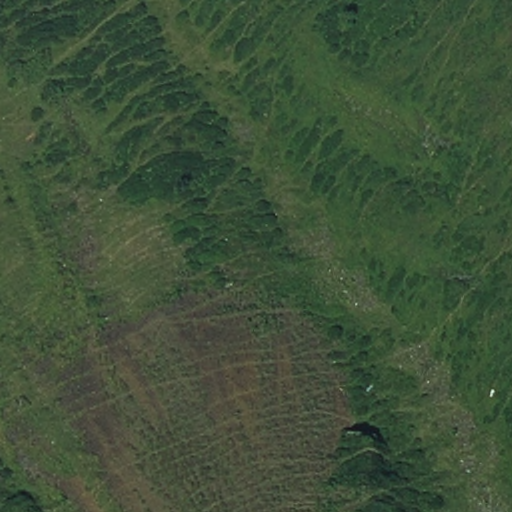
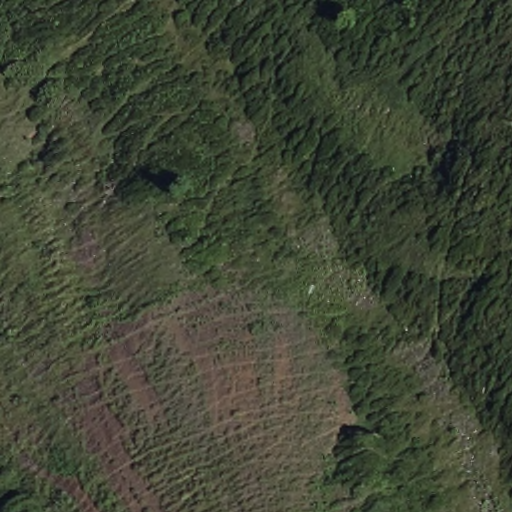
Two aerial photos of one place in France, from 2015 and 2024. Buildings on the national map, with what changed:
[]

